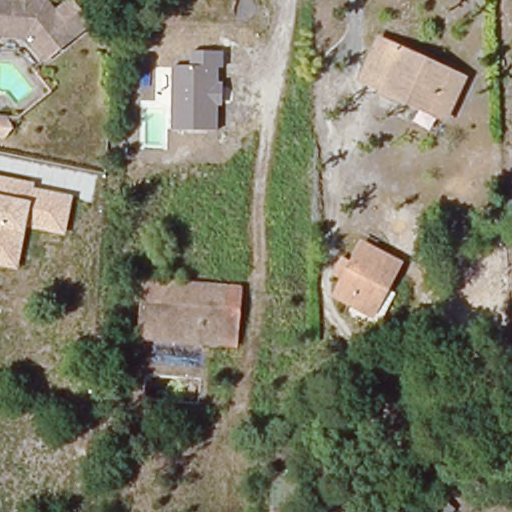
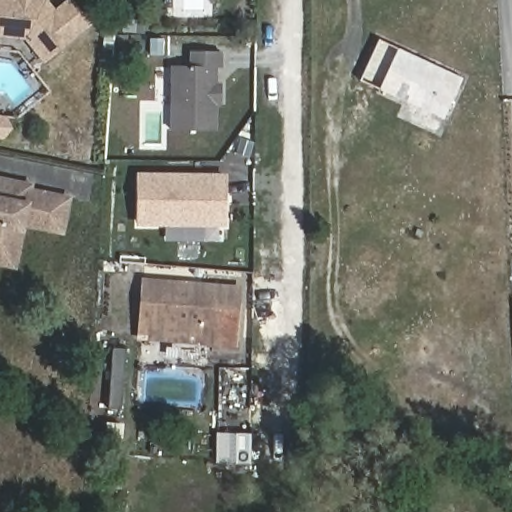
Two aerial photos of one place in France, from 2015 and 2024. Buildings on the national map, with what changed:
unchanged [(42,2),(57,5),(60,10),(72,3),(93,32),(47,64),(32,40),(5,37),(0,41),(0,0),(42,0),(42,2)]
unchanged [(466,78),(448,121),(361,82),(381,39),(466,78)]
unchanged [(171,130),(173,66),(193,66),(193,51),(224,52),(225,69),(219,68),(219,84),(223,84),(223,105),(217,105),(218,130),(171,130)]
new [(227,173),(227,228),(136,226),(136,172),(227,173)]
unchanged [(34,182),(33,188),(72,195),(66,234),(25,228),(18,269),(0,266),(0,176),(34,182)]
demolished [(373,321),(329,300),(362,242),(401,265),(373,321)]
unchanged [(230,293),(229,339),(147,337),(147,291),(230,293)]
demolished [(270,512),(268,448),(299,448),(301,512),(270,512)]
unchanged [(451,512),(432,512),(437,504),(451,512)]

